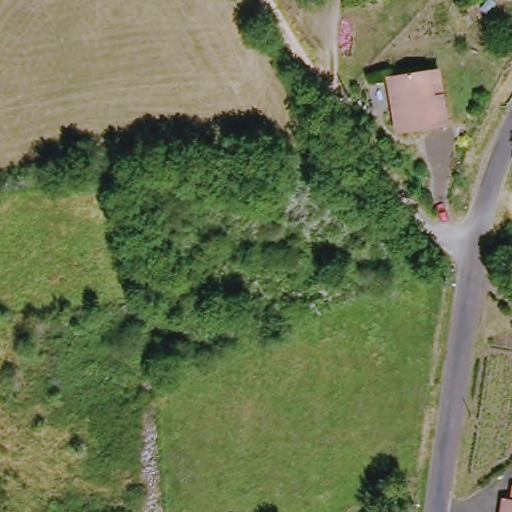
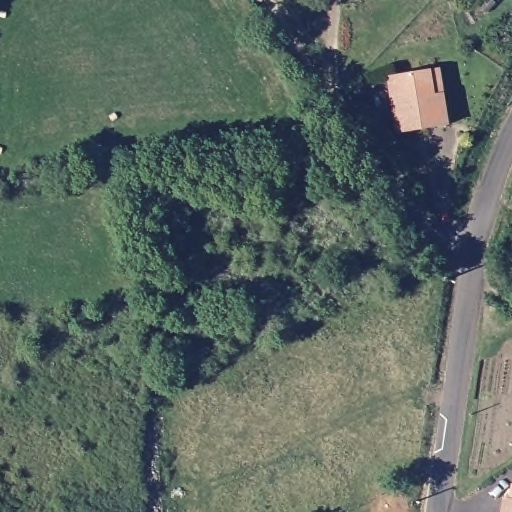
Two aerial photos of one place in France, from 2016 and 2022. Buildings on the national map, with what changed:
unchanged [(429,61),(437,87),(444,117),(398,131),(381,75),(419,63),(429,61)]
unchanged [(512,502),(512,512),(498,512),(499,500),(512,502)]

